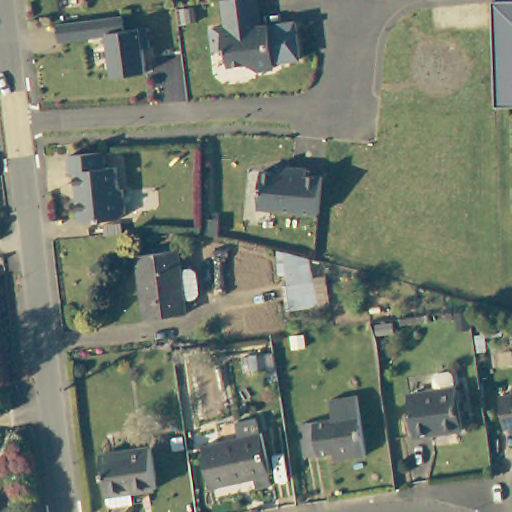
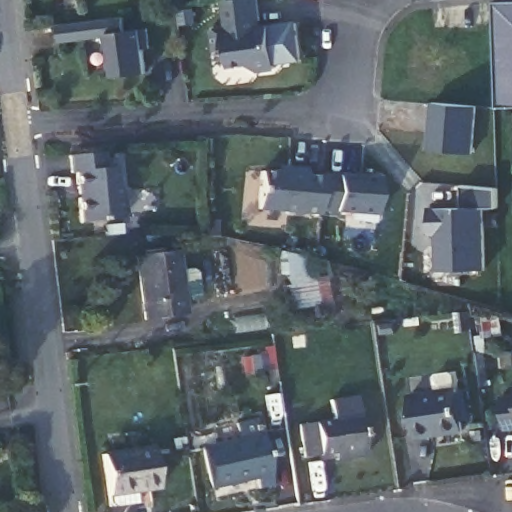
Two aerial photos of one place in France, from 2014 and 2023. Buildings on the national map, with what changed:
unchanged [(253,26),(254,31),(293,27),(297,64),(271,66),(272,73),(252,76),(245,70),(226,71),(225,54),(210,55),(208,34),(224,32),(220,4),(249,0),(253,0),(256,25),(253,26)]
unchanged [(488,1),(512,0),(512,110),(493,110),(488,1)]
unchanged [(127,37),(152,33),(154,53),(148,53),(153,79),(119,84),(118,79),(113,76),(113,69),(116,67),(112,42),(106,42),(105,45),(65,51),(62,31),(88,28),(126,21),(127,37)]
new [(431,102),(476,104),(473,154),(427,151),(431,102)]
unchanged [(81,233),(79,183),(73,182),(71,166),(107,163),(107,179),(119,178),(120,198),(125,201),(128,225),(124,230),(81,233)]
unchanged [(257,204),(260,166),(274,168),(276,164),(286,166),(287,163),(305,163),(305,169),(321,170),(319,208),(257,204)]
new [(380,180),(373,230),(349,228),(351,214),(318,212),(319,208),(321,174),(380,180)]
new [(437,272),(435,236),(429,236),(429,207),(463,207),(463,185),(497,189),(497,209),(485,209),(487,270),(437,272)]
unchanged [(188,315),(146,320),(137,256),(180,251),(188,315)]
unchanged [(283,251),(314,260),(317,279),(326,278),(330,301),(288,307),(284,284),(288,284),(283,251)]
unchanged [(487,338),(485,324),(495,322),(496,328),(504,326),(505,334),(487,338)]
unchanged [(388,340),(386,332),(407,328),(408,336),(388,340)]
unchanged [(462,388),(468,432),(418,441),(412,397),(462,388)]
unchanged [(342,451),(316,455),(308,404),(329,400),(331,413),(348,410),(347,399),(368,394),(378,454),(354,458),(343,460),(342,451)]
unchanged [(264,437),(275,489),(260,493),(257,483),(216,492),(207,451),(264,437)]
unchanged [(160,489),(138,492),(138,502),(111,505),(105,455),(155,449),(160,489)]

